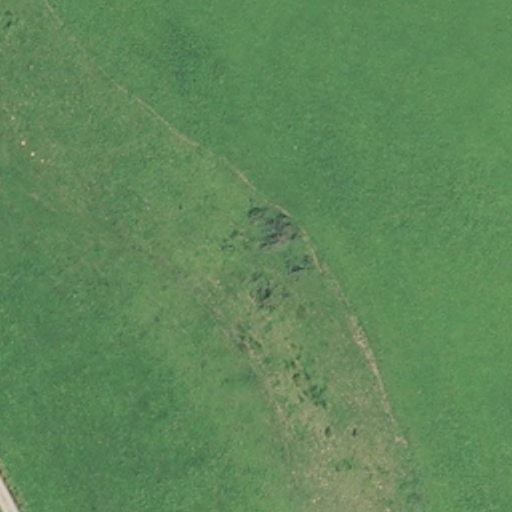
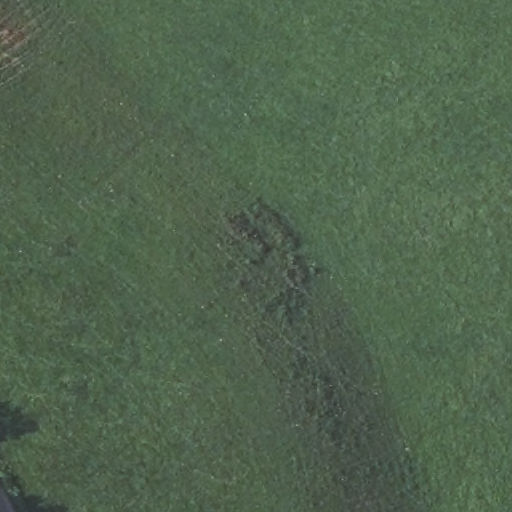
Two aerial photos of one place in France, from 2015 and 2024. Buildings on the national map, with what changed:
[]

